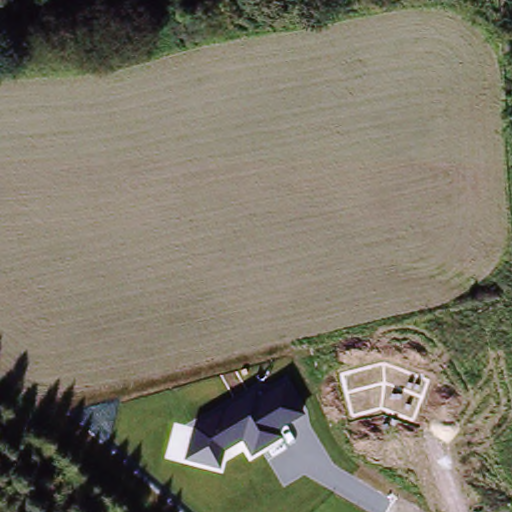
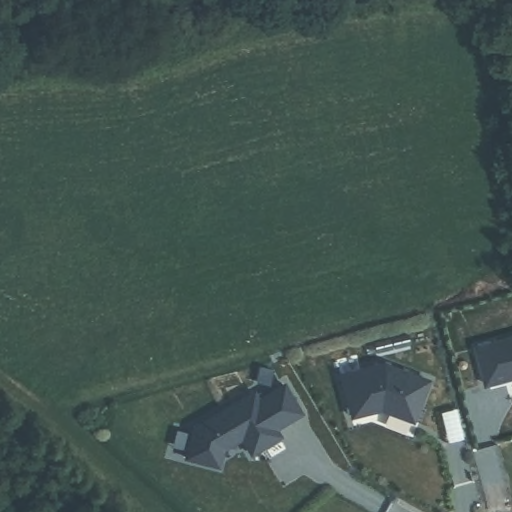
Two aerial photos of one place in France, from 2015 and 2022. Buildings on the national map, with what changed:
new [(512,339),(512,381),(484,388),(474,349),(512,339)]
new [(384,361),(433,379),(416,423),(383,410),(353,419),(341,374),(384,361)]
unchanged [(184,457),(192,424),(279,374),(303,413),(279,428),(282,435),(251,456),(242,440),(225,449),(219,466),(184,457)]

